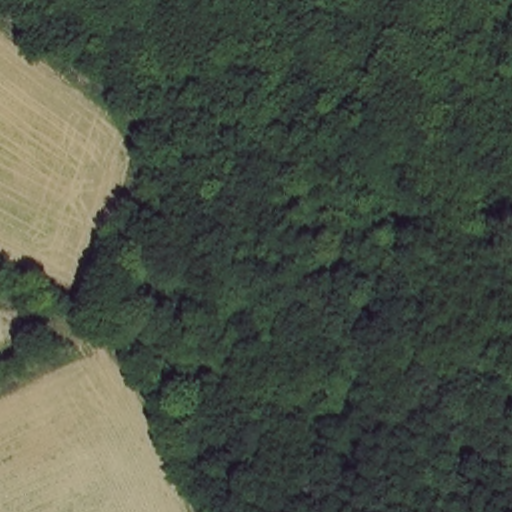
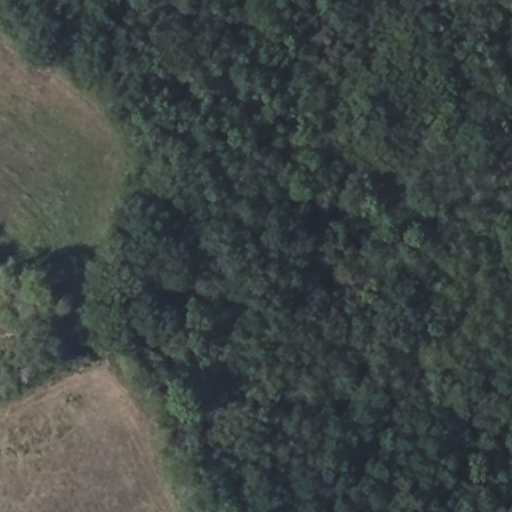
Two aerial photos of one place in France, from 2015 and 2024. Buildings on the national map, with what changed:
unchanged [(355,440),(330,431),(342,396),(369,408),(355,440)]

